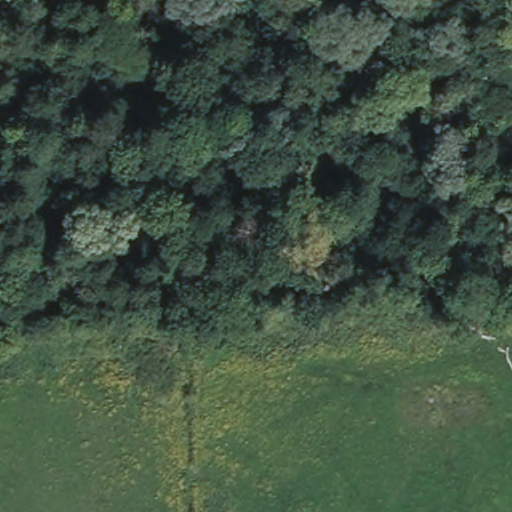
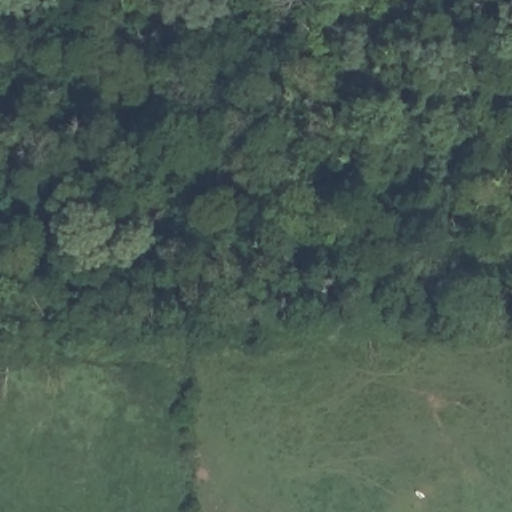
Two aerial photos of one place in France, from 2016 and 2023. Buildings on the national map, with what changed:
[]

